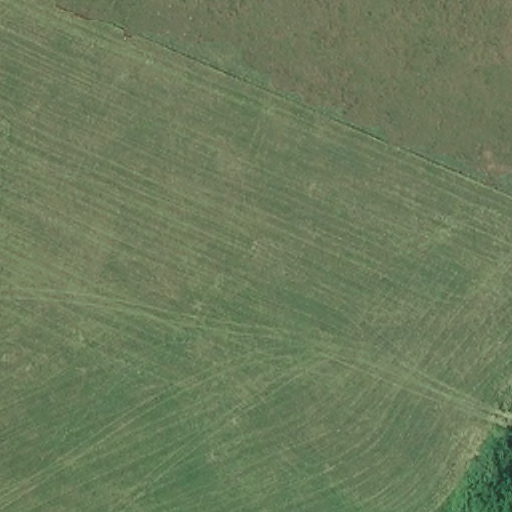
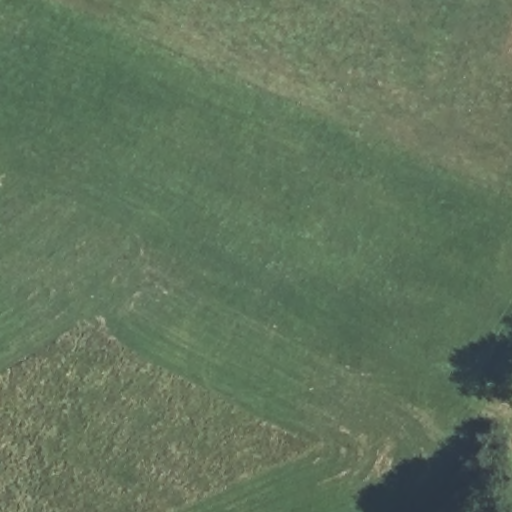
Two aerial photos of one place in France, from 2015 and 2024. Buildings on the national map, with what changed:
[]

